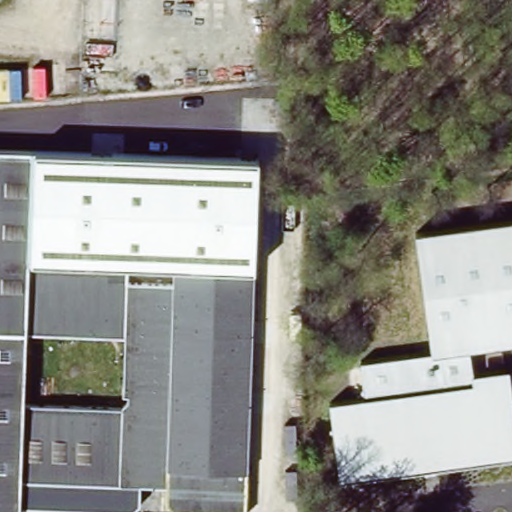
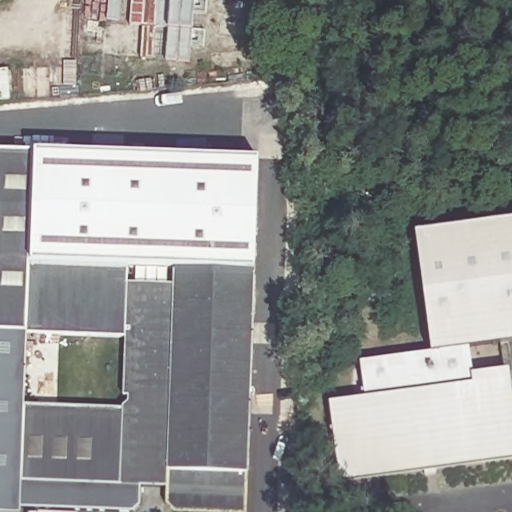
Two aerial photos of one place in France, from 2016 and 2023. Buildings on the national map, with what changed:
unchanged [(167,512),(167,490),(142,488),(141,505),(135,512),(96,512),(22,509),(21,512),(0,512),(0,155),(262,165),(247,512),(167,512)]
unchanged [(414,232),(512,219),(512,342),(430,352),(414,232)]
unchanged [(470,347),(475,373),(509,370),(512,395),(512,461),(341,480),(329,402),(367,398),(362,361),(430,352),(470,347)]

